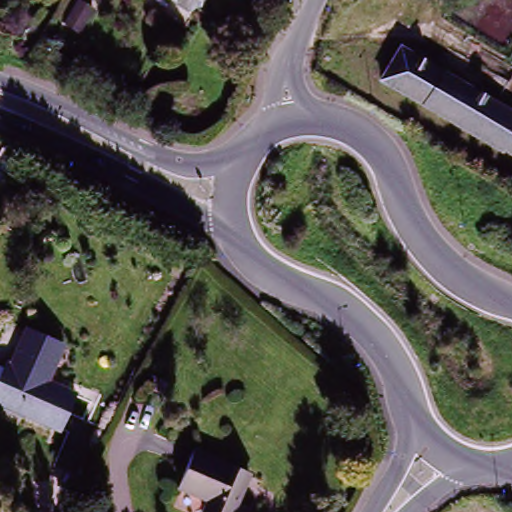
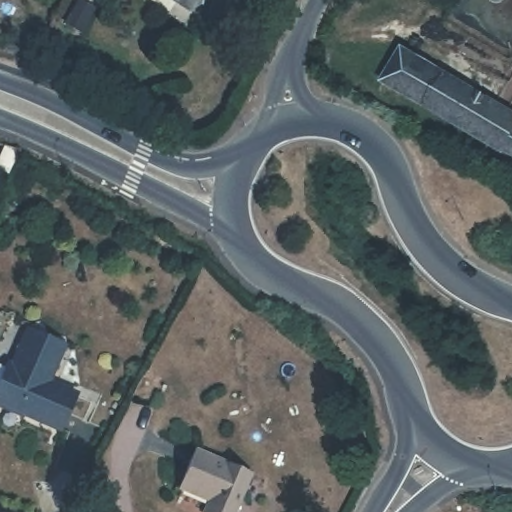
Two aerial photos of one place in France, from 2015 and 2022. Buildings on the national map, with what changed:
unchanged [(197,0),(191,10),(174,0),(197,0)]
unchanged [(409,46),(512,106),(512,155),(388,82),(409,46)]
unchanged [(0,202),(0,171),(3,166),(15,170),(0,202)]
unchanged [(0,405),(0,366),(1,365),(9,368),(26,328),(63,343),(54,365),(40,360),(33,378),(79,397),(65,431),(0,405)]
unchanged [(210,501),(175,488),(192,449),(249,472),(234,512),(205,512),(210,501)]

